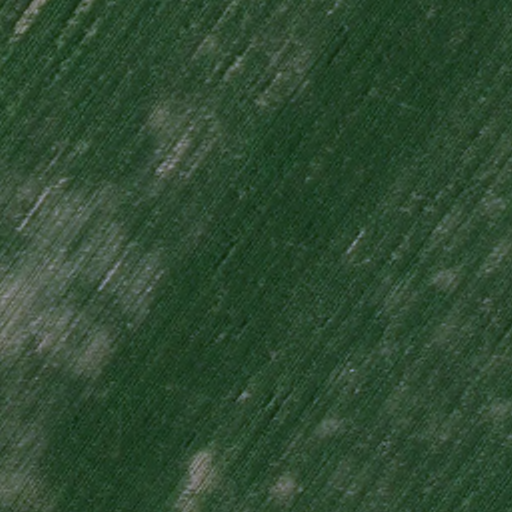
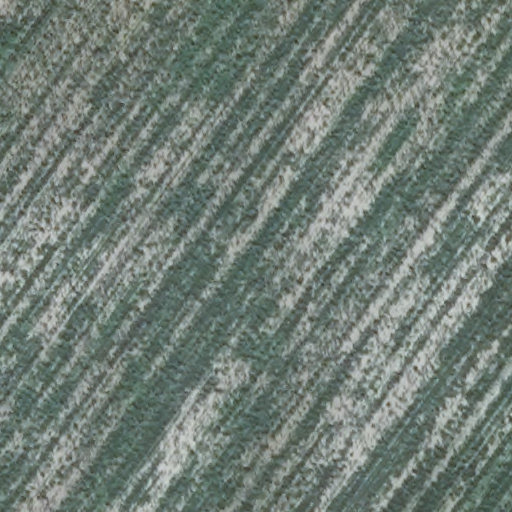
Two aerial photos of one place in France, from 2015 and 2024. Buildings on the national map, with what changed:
[]

